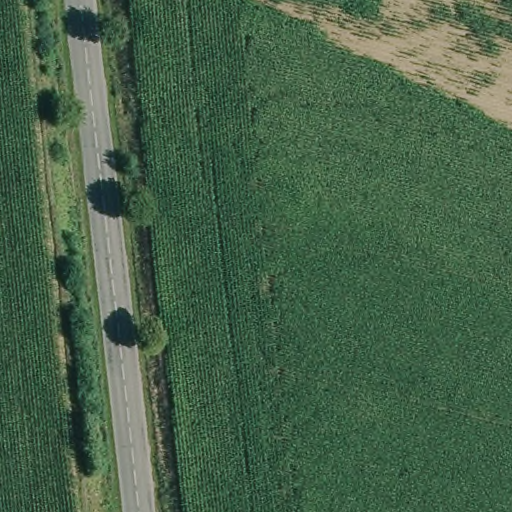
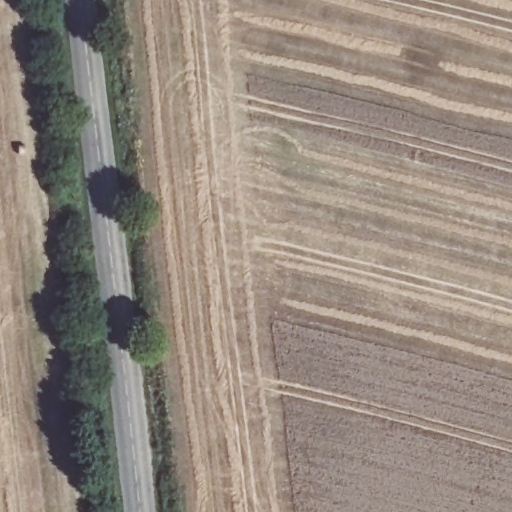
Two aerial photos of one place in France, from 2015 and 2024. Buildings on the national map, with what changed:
[]

